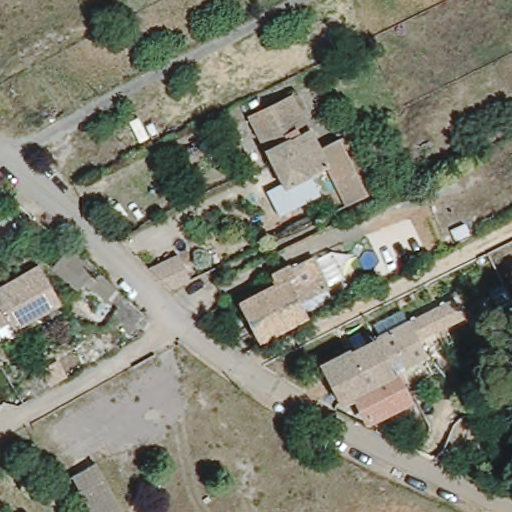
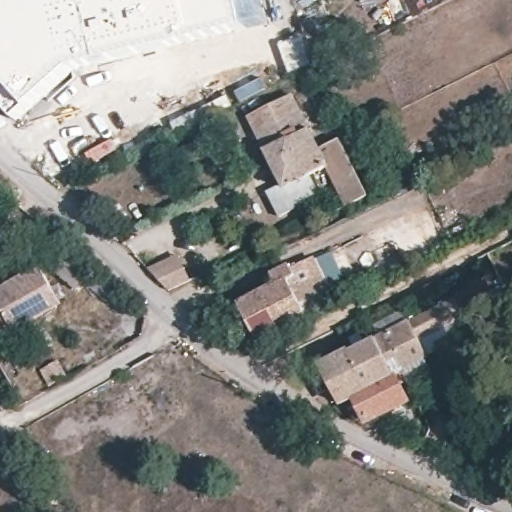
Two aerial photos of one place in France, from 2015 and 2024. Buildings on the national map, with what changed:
new [(248,29),(114,62),(79,73),(71,78),(17,123),(0,104),(0,8),(9,0),(263,0),(270,23),(248,29)]
new [(303,35),(313,66),(288,74),(277,43),(303,35)]
unchanged [(322,151),(277,173),(274,167),(247,116),(293,93),(320,147),(322,151)]
unchanged [(322,151),(320,147),(339,138),(353,168),(366,195),(345,205),(326,166),(283,188),(277,173),(322,151)]
unchanged [(473,232),(450,240),(440,213),(462,205),(473,232)]
unchanged [(110,282),(147,314),(136,328),(128,322),(84,284),(79,290),(23,240),(39,220),(110,282)]
unchanged [(310,315),(303,318),(262,339),(243,303),(281,284),(275,273),(294,263),(296,267),(313,258),(315,262),(331,253),(344,279),(327,287),(329,289),(303,303),(310,315)]
unchanged [(181,256),(193,282),(173,293),(150,270),(181,256)]
unchanged [(59,302),(11,329),(0,310),(0,286),(38,264),(59,302)]
unchanged [(418,337),(429,360),(423,364),(427,374),(400,388),(408,405),(368,425),(354,399),(342,405),(323,368),(454,301),(461,314),(418,337)]
new [(43,372),(59,362),(67,377),(49,386),(43,372)]
demolished [(122,512),(90,512),(70,475),(95,462),(122,512)]

